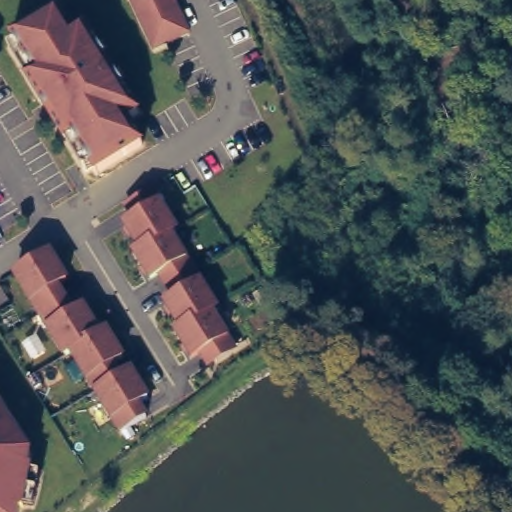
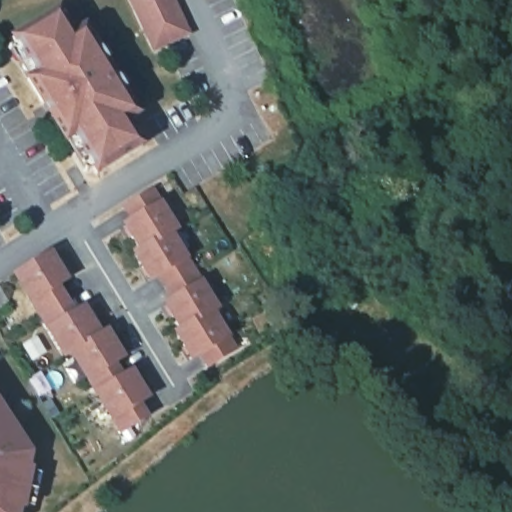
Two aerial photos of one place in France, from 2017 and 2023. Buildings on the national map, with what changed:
unchanged [(153,55),(127,0),(176,0),(192,35),(153,55)]
unchanged [(97,178),(90,171),(85,175),(8,49),(17,43),(13,37),(60,5),(75,29),(86,21),(144,115),(133,122),(147,147),(97,178)]
unchanged [(212,370),(201,354),(192,360),(172,328),(177,325),(163,300),(172,295),(162,275),(150,284),(130,252),(135,249),(121,224),(127,219),(122,210),(157,187),(181,231),(173,236),(220,314),(217,316),(237,350),(212,370)]
unchanged [(150,418),(120,436),(70,355),(65,360),(12,275),(52,250),(69,280),(60,286),(77,312),(87,305),(105,330),(109,327),(127,358),(117,365),(123,372),(132,365),(151,397),(142,402),(151,418),(150,418)]
unchanged [(44,472),(40,509),(22,507),(21,512),(0,512),(0,401),(33,453),(31,471),(44,472)]

